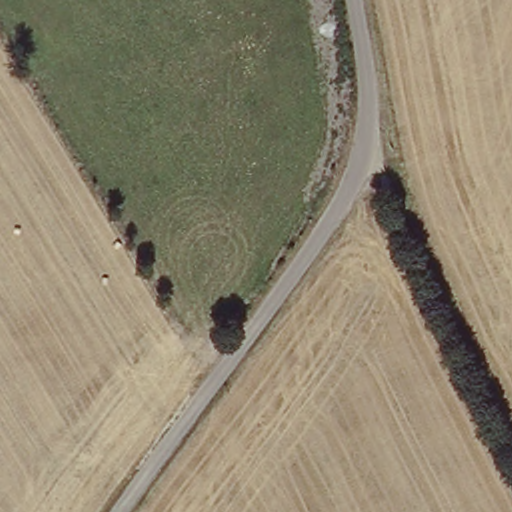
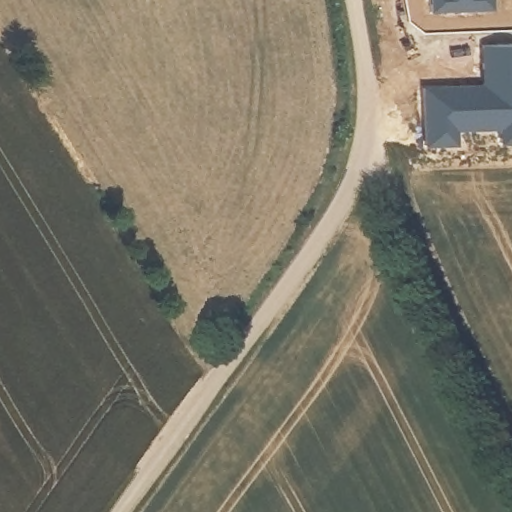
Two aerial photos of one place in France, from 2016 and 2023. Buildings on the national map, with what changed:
new [(488,12),(426,14),(425,0),(487,0),(488,12)]
new [(482,83),(482,45),(512,45),(512,145),(501,145),(498,129),(458,130),(457,145),(424,144),(422,88),(482,83)]

